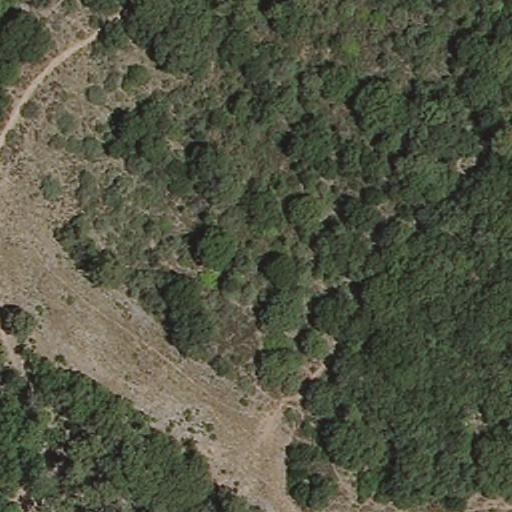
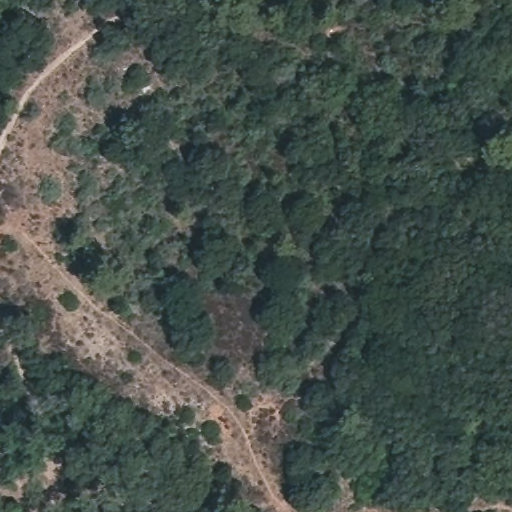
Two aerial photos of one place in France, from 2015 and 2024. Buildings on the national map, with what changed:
unchanged [(19,512),(15,512),(17,510),(19,512)]

